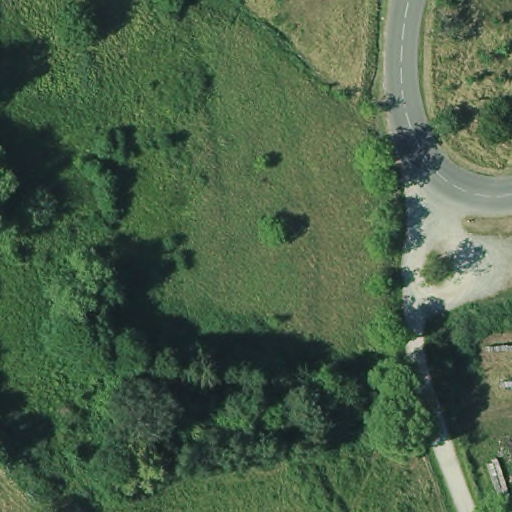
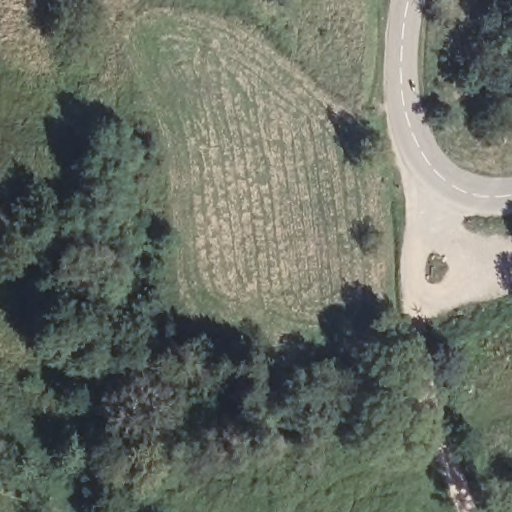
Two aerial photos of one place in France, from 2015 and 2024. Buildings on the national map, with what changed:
[]

